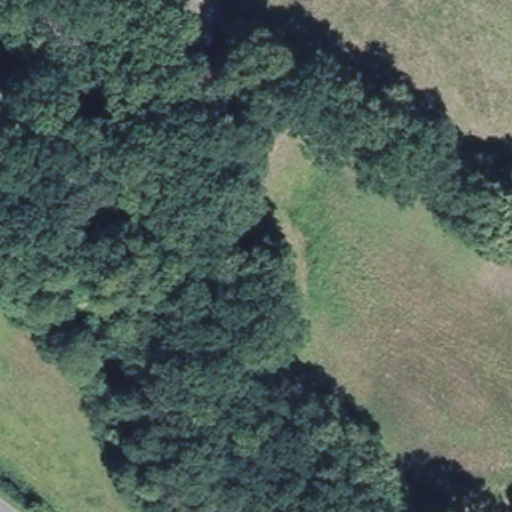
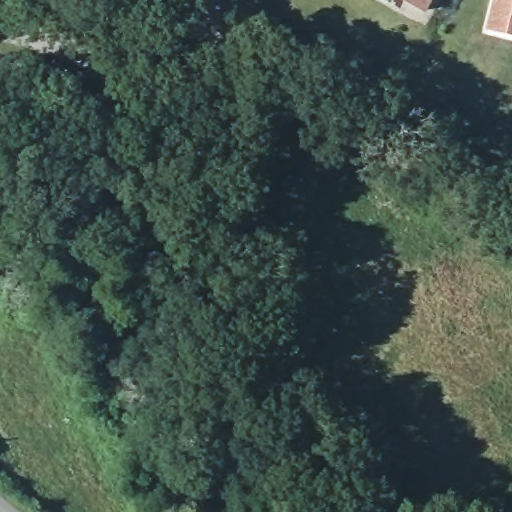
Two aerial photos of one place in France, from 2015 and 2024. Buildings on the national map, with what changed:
new [(398,0),(432,0),(425,13),(398,0)]
new [(491,0),(512,0),(512,40),(484,34),(491,0)]

